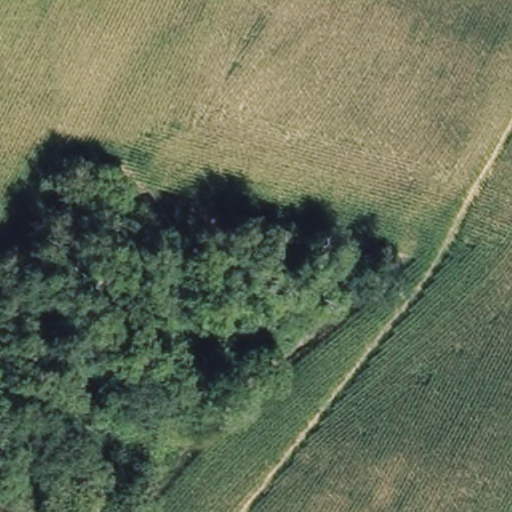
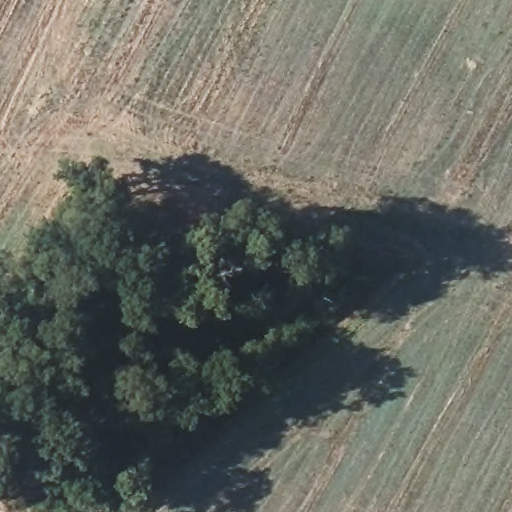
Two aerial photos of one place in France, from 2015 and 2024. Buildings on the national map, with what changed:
[]

